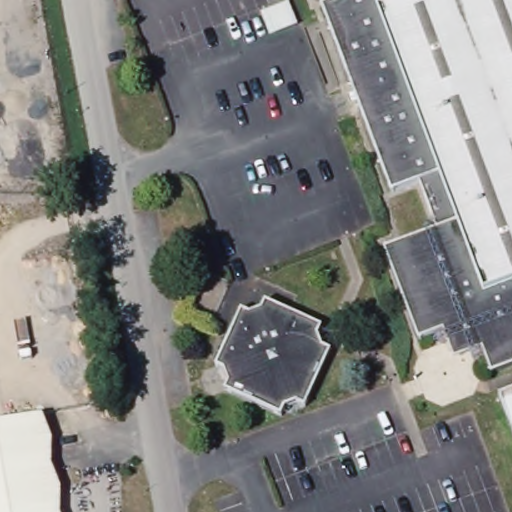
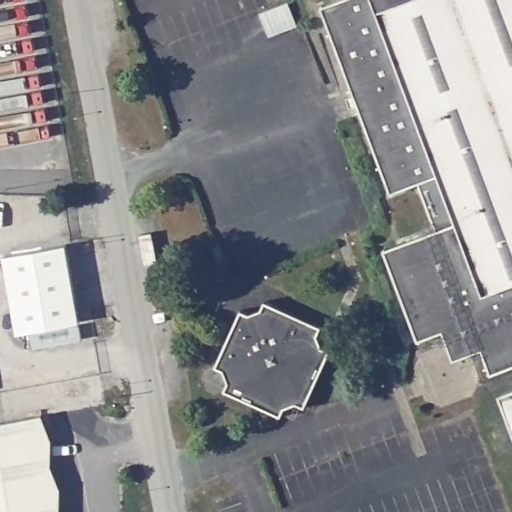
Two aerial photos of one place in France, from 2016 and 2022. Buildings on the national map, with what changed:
unchanged [(491,375),(482,351),(471,354),(469,350),(465,348),(461,357),(452,352),(453,347),(452,342),(448,343),(443,332),(418,341),(384,249),(437,229),(420,185),(392,193),(322,7),(339,0),(512,0),(512,367),(491,375)]
new [(66,245),(80,322),(18,333),(5,256),(66,245)]
unchanged [(301,408),(292,404),(280,408),(276,417),(220,391),(224,382),(219,371),(211,367),(237,310),(245,313),(256,308),(260,301),(318,326),(314,335),(318,347),(327,351),(301,408)]
new [(80,325),(83,340),(32,348),(30,333),(80,325)]
unchanged [(499,395),(512,390),(512,430),(499,395)]
unchanged [(55,509),(57,512),(0,512),(0,417),(37,410),(47,435),(47,460),(56,484),(55,509)]

